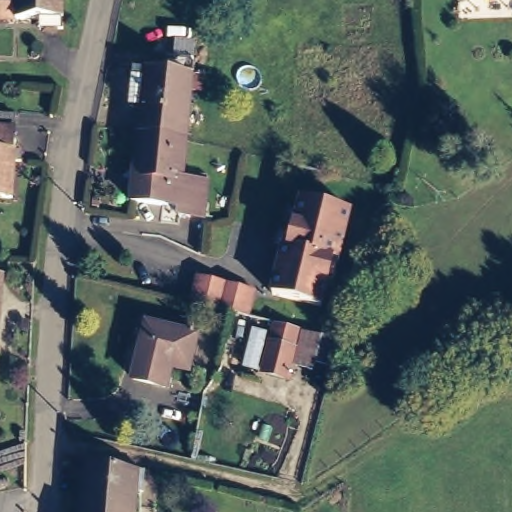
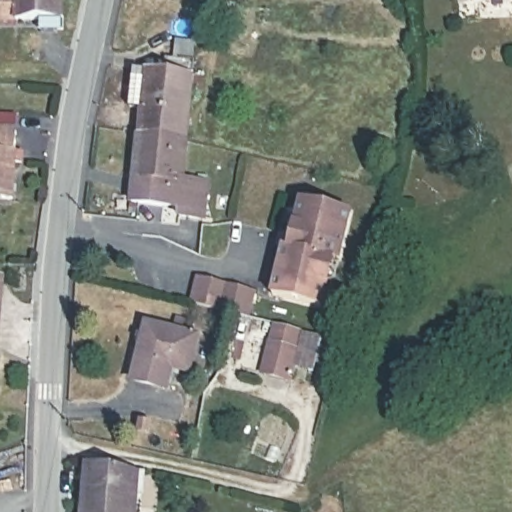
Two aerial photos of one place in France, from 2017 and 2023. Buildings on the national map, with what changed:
unchanged [(54,33),(32,33),(31,23),(0,23),(0,0),(55,0),(54,33)]
unchanged [(135,112),(126,110),(131,72),(171,77),(173,65),(178,66),(191,69),(189,84),(202,85),(201,98),(188,98),(181,147),(132,139),(135,112)]
unchanged [(3,155),(10,156),(9,163),(3,163),(0,203),(0,118),(6,118),(3,155)]
unchanged [(176,188),(198,191),(193,226),(171,222),(171,214),(123,206),(132,139),(181,147),(176,188)]
unchanged [(284,230),(289,204),(341,219),(318,312),(259,293),(255,292),(274,225),(284,230)]
unchanged [(189,304),(196,278),(253,291),(248,317),(189,304)]
unchanged [(251,330),(269,334),(273,323),(338,341),(332,366),(314,362),(314,370),(294,365),(289,380),(240,368),(251,330)]
unchanged [(116,382),(134,326),(161,334),(163,324),(181,329),(178,340),(185,343),(174,378),(157,374),(152,394),(116,382)]
unchanged [(130,472),(129,490),(125,490),(124,512),(72,512),(73,469),(130,472)]

